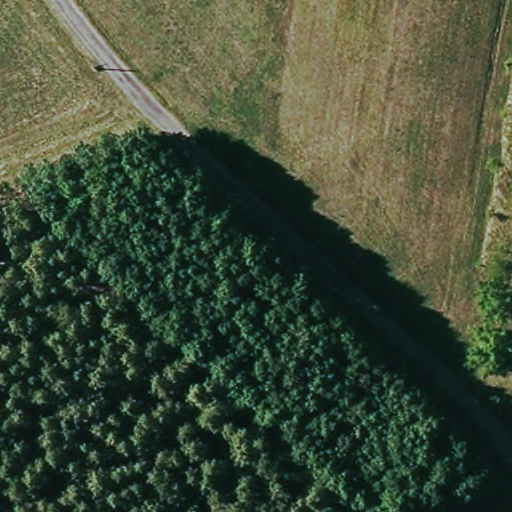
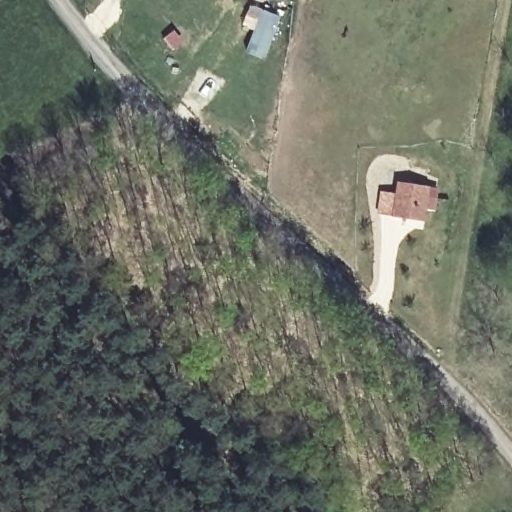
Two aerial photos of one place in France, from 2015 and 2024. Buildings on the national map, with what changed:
new [(281,17),(267,58),(247,52),(262,10),(281,17)]
new [(431,187),(426,220),(394,216),(378,214),(381,192),(397,194),(399,183),(431,187)]

